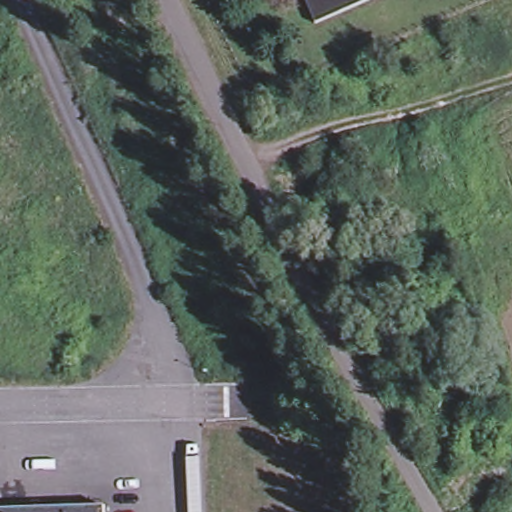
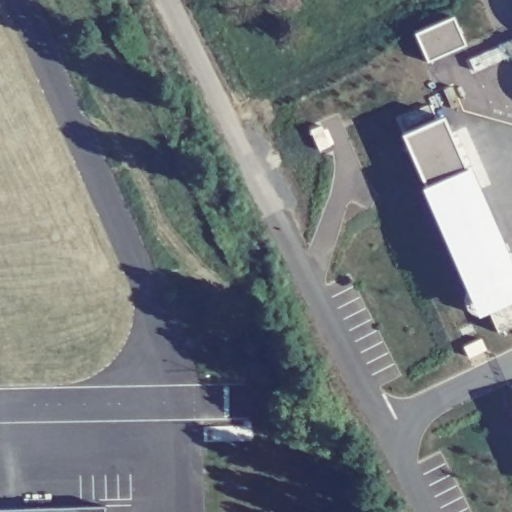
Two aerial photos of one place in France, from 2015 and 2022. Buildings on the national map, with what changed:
new [(416,35),(455,18),(466,44),(428,61),(416,35)]
new [(481,314),(474,314),(468,309),(465,302),(465,294),(470,287),(428,190),(405,134),(443,119),(467,173),(508,269),(512,269),(512,325),(499,331),(490,312),(481,314)]

